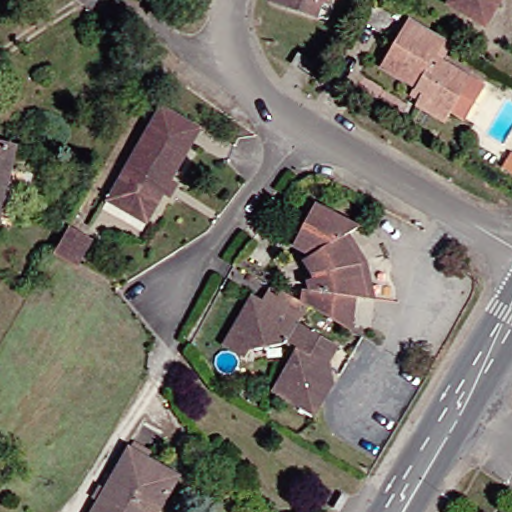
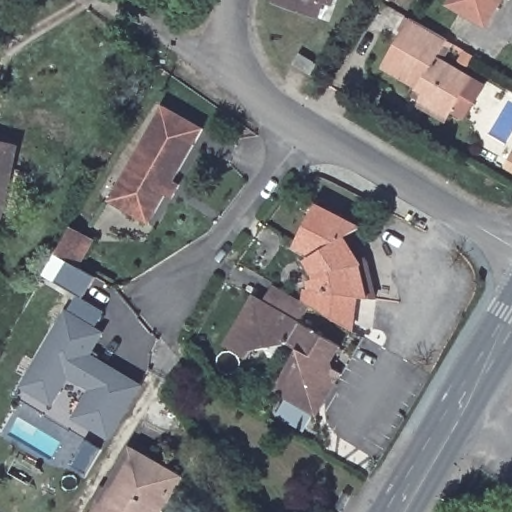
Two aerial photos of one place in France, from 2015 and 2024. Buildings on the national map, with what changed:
unchanged [(266,6),(268,0),(328,0),(325,9),(317,6),(311,21),(266,6)]
unchanged [(452,0),(503,0),(486,30),(447,7),(452,0)]
unchanged [(411,97),(414,92),(406,87),(413,75),(387,59),(415,11),(451,32),(440,50),(475,72),(450,113),(447,119),(411,97)]
unchanged [(287,67),(294,55),(311,66),(304,76),(287,67)]
unchanged [(161,208),(153,203),(136,232),(97,209),(152,115),(192,137),(162,189),(169,194),(161,208)]
unchanged [(4,181),(0,198),(0,144),(12,147),(4,181)]
unchanged [(374,296),(363,295),(360,327),(318,304),(310,299),(313,289),(319,290),(317,278),(325,277),(315,258),(322,254),(303,243),(325,204),(370,226),(358,233),(375,261),(383,297),(374,296)]
unchanged [(79,220),(101,234),(86,260),(62,247),(79,220)]
new [(94,277),(82,298),(54,281),(66,262),(94,277)]
unchanged [(280,388),(294,367),(300,367),(300,356),(305,348),(295,342),(260,348),(254,357),(232,344),(248,318),(262,294),(270,299),(272,300),(282,283),(310,299),(318,304),(308,320),(345,343),(333,361),(341,377),(327,397),(318,411),(292,395),(280,388)]
new [(95,329),(66,312),(77,295),(82,298),(82,297),(105,311),(95,329)]
new [(87,354),(139,386),(107,437),(74,417),(91,389),(67,374),(50,402),(22,385),(66,312),(94,329),(100,332),(87,354)]
unchanged [(93,488),(100,492),(124,451),(129,443),(146,454),(141,461),(172,481),(153,512),(87,512),(92,504),(85,500),(93,488)]

